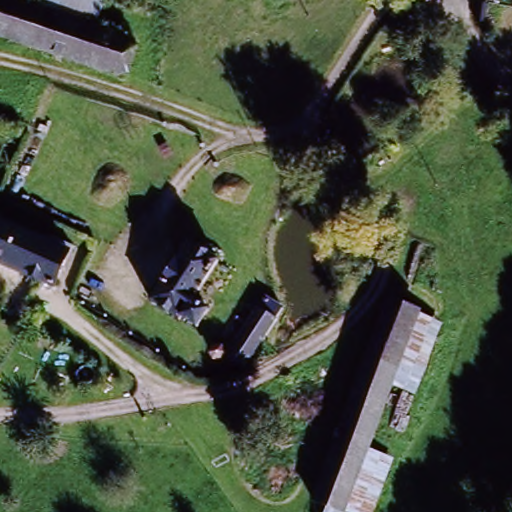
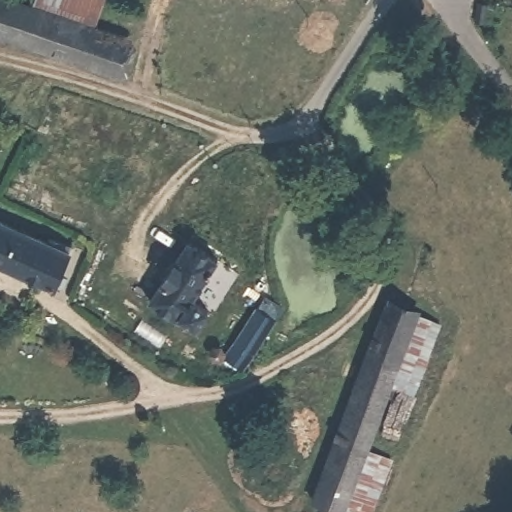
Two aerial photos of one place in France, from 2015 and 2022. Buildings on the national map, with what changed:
unchanged [(139,47),(125,83),(0,35),(0,0),(51,0),(47,10),(106,34),(139,47)]
unchanged [(51,0),(112,0),(118,2),(106,34),(47,10),(51,0)]
unchanged [(69,253),(53,287),(0,264),(0,223),(69,253)]
unchanged [(202,309),(191,326),(175,315),(173,318),(146,300),(183,244),(211,263),(186,299),(202,309)]
unchanged [(237,345),(274,286),(280,290),(290,296),(256,353),(233,363),(209,360),(220,344),(216,341),(221,336),(228,336),(233,338),(237,345)]
unchanged [(354,505),(324,494),(395,300),(426,311),(405,367),(354,505)]
unchanged [(447,319),(427,375),(405,367),(426,311),(447,319)]

